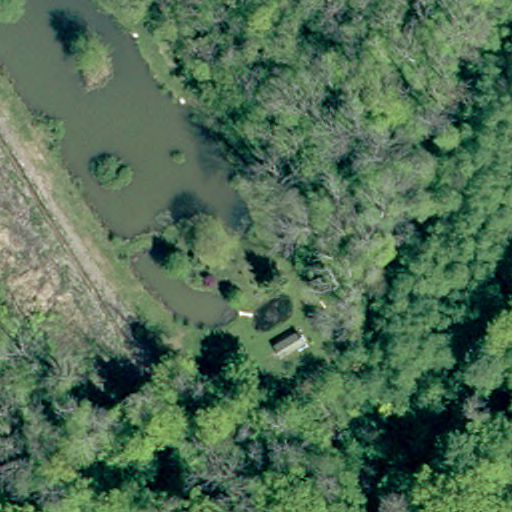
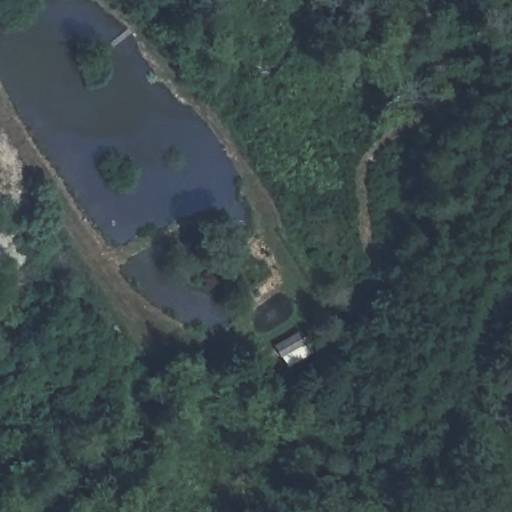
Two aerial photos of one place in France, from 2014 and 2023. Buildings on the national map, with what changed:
unchanged [(301,328),(307,344),(284,355),(272,341),(301,328)]

